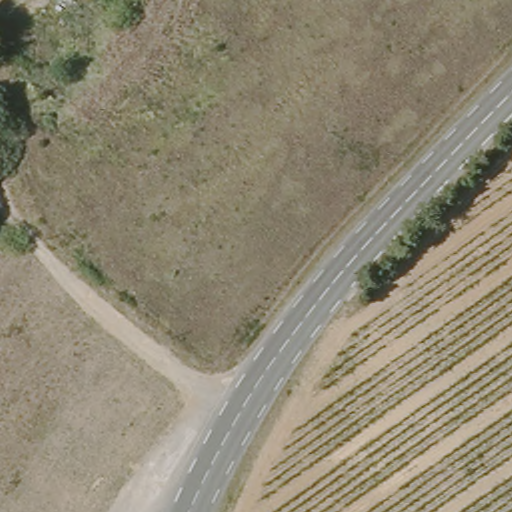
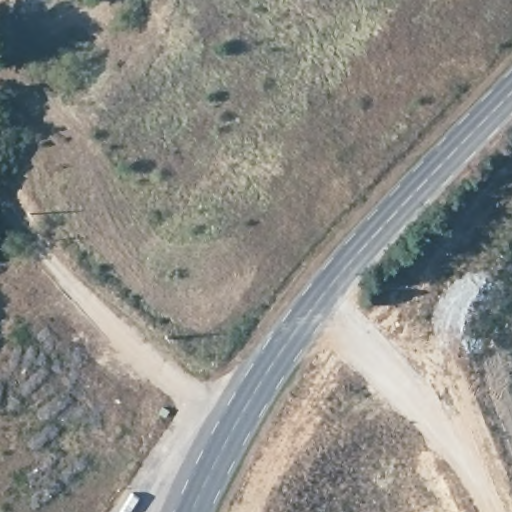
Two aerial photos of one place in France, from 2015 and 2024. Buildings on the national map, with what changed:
unchanged [(0,237),(0,222),(4,224),(0,237)]

